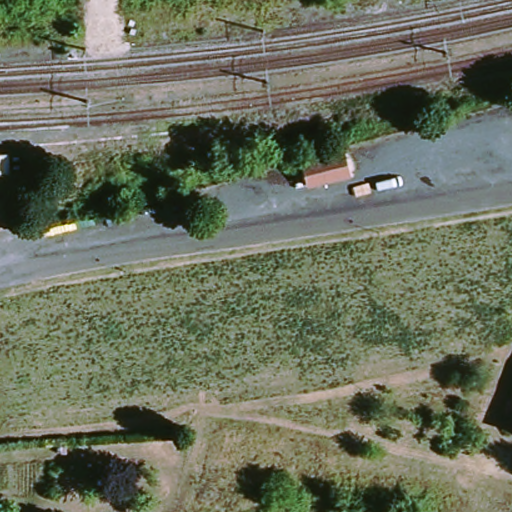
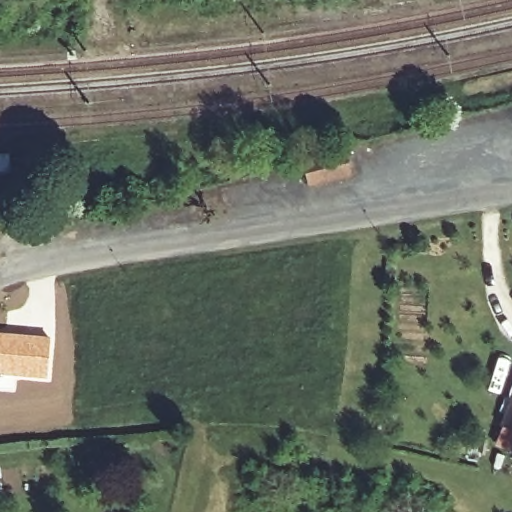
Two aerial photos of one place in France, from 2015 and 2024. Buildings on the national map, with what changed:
unchanged [(310,187),(302,161),(355,145),(363,171),(310,187)]
new [(50,336),(45,377),(0,373),(0,332),(50,336)]
unchanged [(512,407),(512,431),(504,428),(512,407)]

